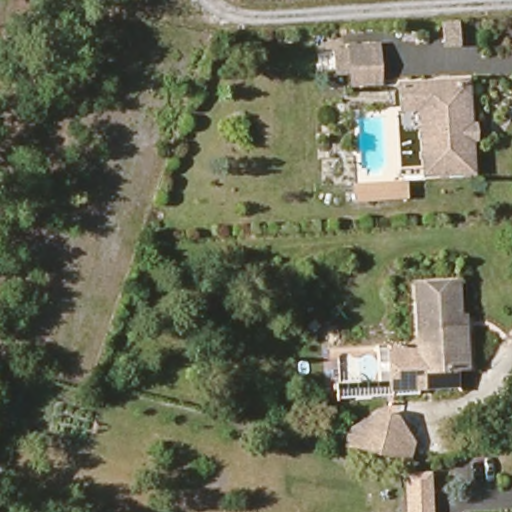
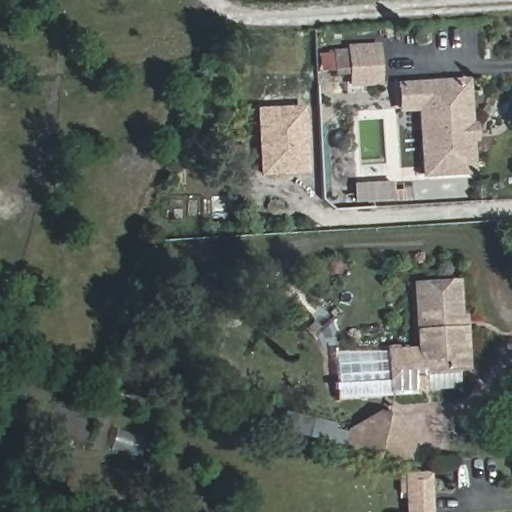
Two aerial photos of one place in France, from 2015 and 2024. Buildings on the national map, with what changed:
unchanged [(352,85),(350,52),(350,47),(378,46),(378,51),(380,83),(352,85)]
unchanged [(476,136),(478,167),(430,170),(426,105),(407,106),(406,80),(472,76),(475,119),(479,119),(480,136),(476,136)]
new [(306,105),(310,173),(260,177),(256,107),(306,105)]
unchanged [(360,200),(359,185),(358,179),(390,177),(390,182),(391,198),(360,200)]
unchanged [(472,362),(458,363),(460,380),(397,385),(394,347),(425,345),(420,281),(463,277),(466,311),(468,310),(472,362)]
unchanged [(407,418),(423,443),(418,462),(356,447),(361,430),(377,421),(389,413),(407,417),(407,418)]
unchanged [(433,480),(435,512),(414,512),(412,481),(433,480)]

